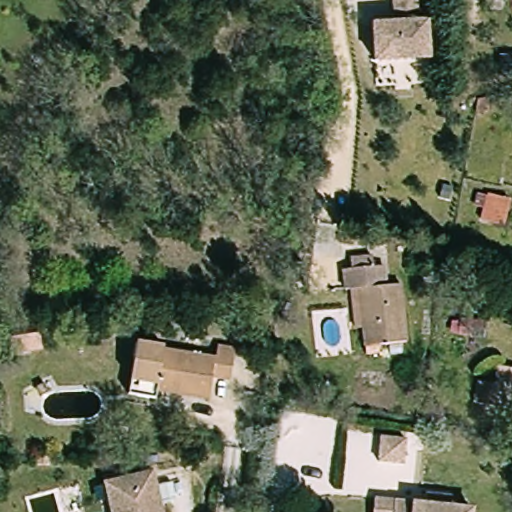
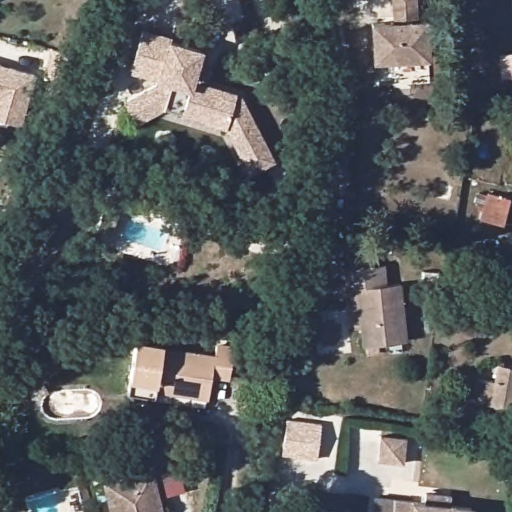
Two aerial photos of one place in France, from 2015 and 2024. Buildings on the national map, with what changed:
unchanged [(392,0),(416,0),(417,19),(426,19),(429,56),(375,60),(372,22),(394,21),(392,0)]
new [(279,162),(257,175),(251,179),(226,137),(168,117),(144,131),(141,125),(129,104),(161,86),(163,82),(133,73),(145,32),(173,40),(173,42),(203,53),(198,70),(213,74),(209,86),(241,97),(279,162)]
new [(23,126),(0,120),(0,64),(37,76),(23,126)]
unchanged [(499,223),(477,220),(481,197),(503,200),(499,223)]
new [(188,234),(178,267),(163,263),(173,230),(188,234)]
unchanged [(408,337),(361,342),(354,287),(337,289),(334,268),(368,265),(370,286),(401,282),(408,337)]
unchanged [(5,339),(35,337),(36,352),(6,354),(5,339)]
unchanged [(156,345),(156,351),(210,356),(211,346),(231,347),(228,383),(206,381),(204,398),(153,393),(151,405),(122,402),(128,342),(156,345)]
unchanged [(478,397),(482,377),(495,378),(498,364),(512,366),(512,401),(478,397)]
new [(317,459),(281,455),(284,418),(321,424),(317,459)]
new [(382,434),(407,437),(404,462),(379,459),(382,434)]
unchanged [(164,512),(128,512),(127,508),(105,507),(100,482),(153,470),(164,512)]
unchanged [(375,492),(404,497),(403,512),(372,512),(375,492)]
unchanged [(477,506),(476,512),(403,512),(404,497),(477,506)]

